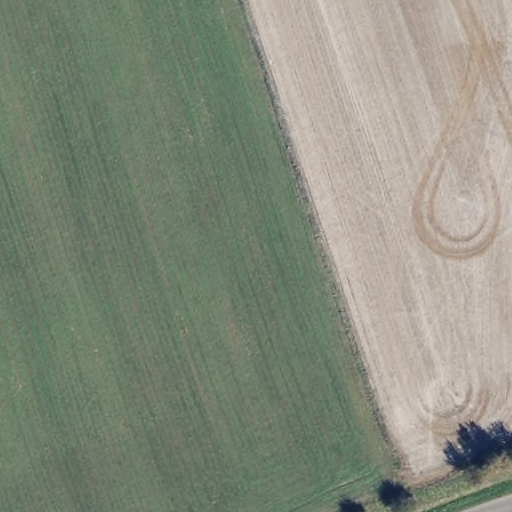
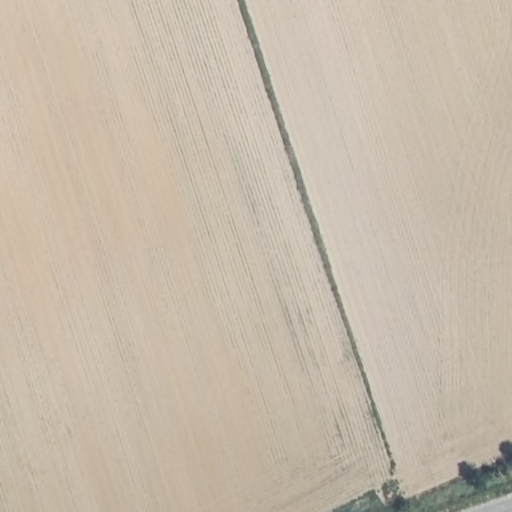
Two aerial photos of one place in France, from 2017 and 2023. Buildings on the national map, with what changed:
[]

